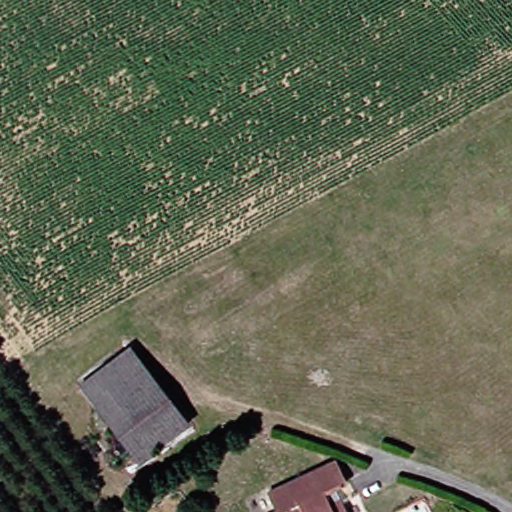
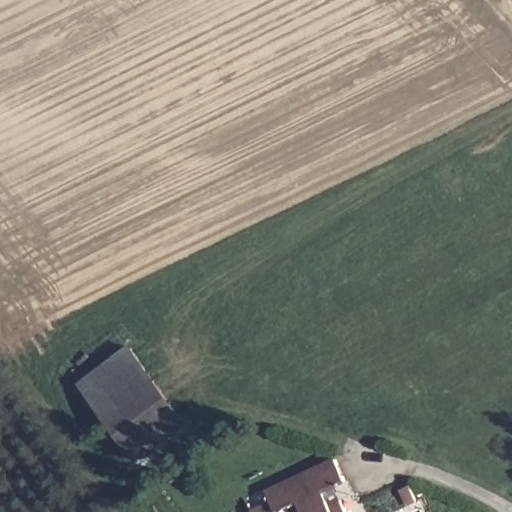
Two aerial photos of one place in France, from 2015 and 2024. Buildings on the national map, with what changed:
unchanged [(95,390),(144,353),(203,429),(154,466),(95,390)]
unchanged [(287,507),(277,488),(346,456),(356,477),(333,487),(340,500),(351,495),(359,512),(276,512),(287,507)]

